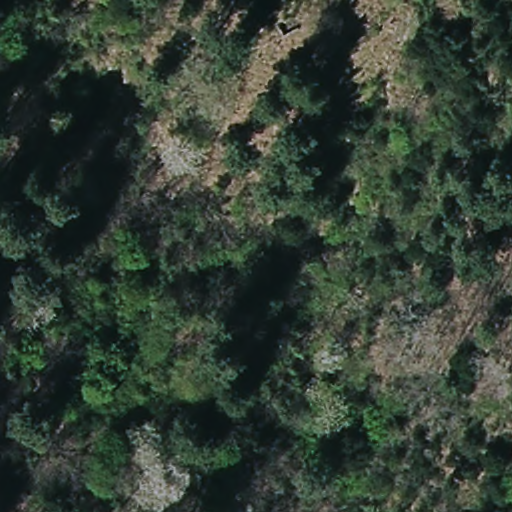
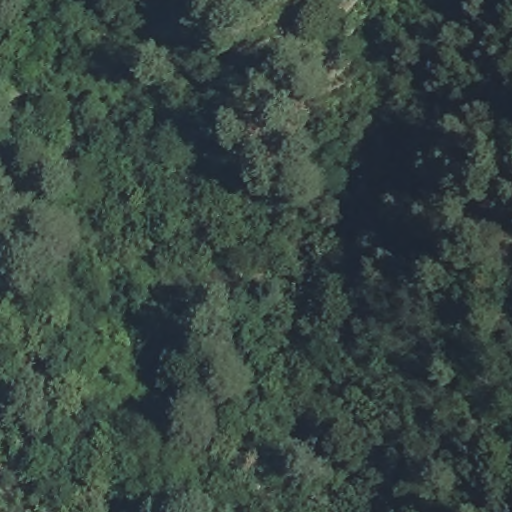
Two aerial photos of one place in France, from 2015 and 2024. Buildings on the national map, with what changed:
[]

